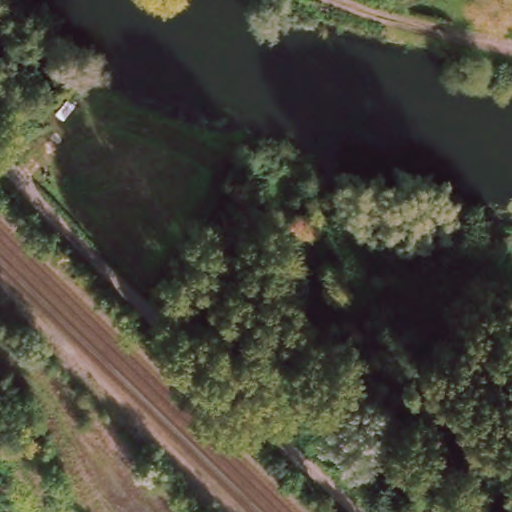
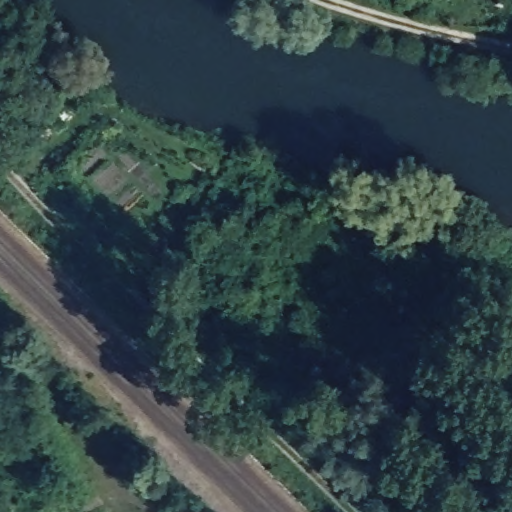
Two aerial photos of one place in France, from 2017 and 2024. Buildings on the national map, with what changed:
[]

